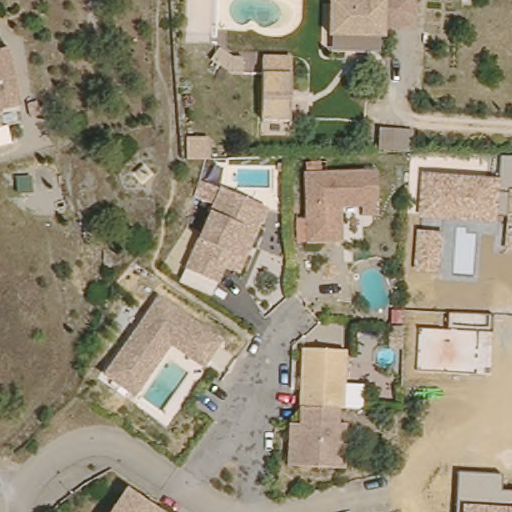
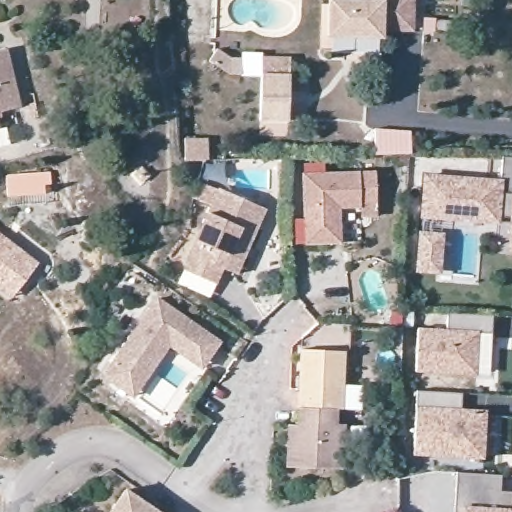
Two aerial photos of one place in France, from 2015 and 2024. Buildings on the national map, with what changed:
unchanged [(335,36),(336,0),(360,0),(384,1),(385,38),(335,36)]
unchanged [(385,31),(384,1),(385,0),(415,0),(414,31),(385,31)]
new [(213,46),(231,57),(242,56),(242,74),(230,73),(213,65),(213,46)]
unchanged [(20,110),(0,114),(0,52),(10,51),(20,110)]
unchanged [(288,127),(259,125),(262,76),(290,79),(288,127)]
unchanged [(415,131),(414,150),(380,148),(381,129),(415,131)]
unchanged [(206,138),(206,160),(184,161),(183,137),(206,138)]
unchanged [(503,156),(512,156),(512,252),(507,252),(509,216),(499,215),(497,225),(419,219),(423,171),(501,177),(503,156)]
unchanged [(341,252),(311,253),(308,182),(381,180),(382,212),(366,213),(366,216),(346,217),(347,252),(341,252)]
unchanged [(228,277),(221,293),(188,278),(224,198),(270,218),(260,240),(241,283),(228,277)]
unchanged [(446,232),(442,275),(416,274),(418,231),(446,232)]
new [(0,290),(0,234),(40,264),(12,299),(0,290)]
unchanged [(169,343),(133,395),(127,391),(112,380),(104,375),(120,352),(157,298),(219,341),(206,360),(202,366),(169,343)]
new [(493,333),(479,331),(476,376),(415,372),(417,327),(447,329),(448,313),(492,315),(493,333)]
unchanged [(402,328),(402,347),(388,347),(389,327),(402,328)]
unchanged [(304,406),(305,389),(307,348),(349,350),(347,408),(341,408),(304,406)]
new [(462,409),(487,410),(484,458),(413,454),(416,391),(461,392),(462,409)]
unchanged [(341,408),(341,423),(350,423),(348,468),(291,466),(293,431),(293,423),(303,424),(304,406),(341,408)]
unchanged [(500,490),(512,490),(512,512),(455,512),(457,472),(501,474),(500,490)]
unchanged [(115,484),(158,512),(96,512),(115,484)]

